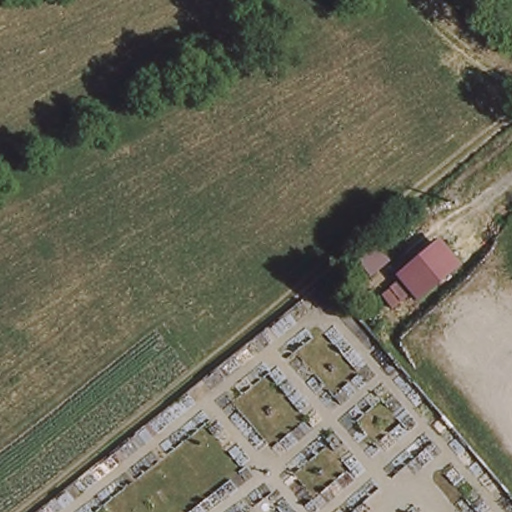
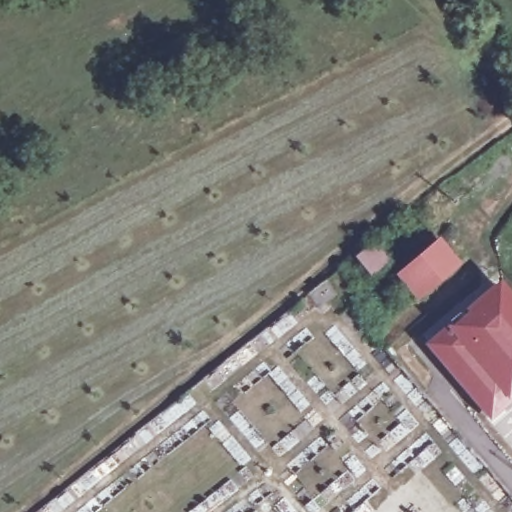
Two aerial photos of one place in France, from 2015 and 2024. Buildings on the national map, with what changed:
unchanged [(456,264),(414,299),(396,277),(438,242),(456,264)]
new [(446,325),(450,322),(453,323),(466,311),(464,309),(499,280),(512,295),(512,395),(509,397),(512,400),(512,402),(489,420),(424,345),(446,325)]

